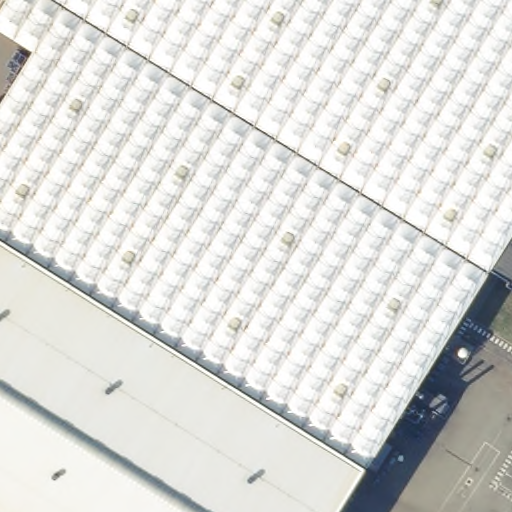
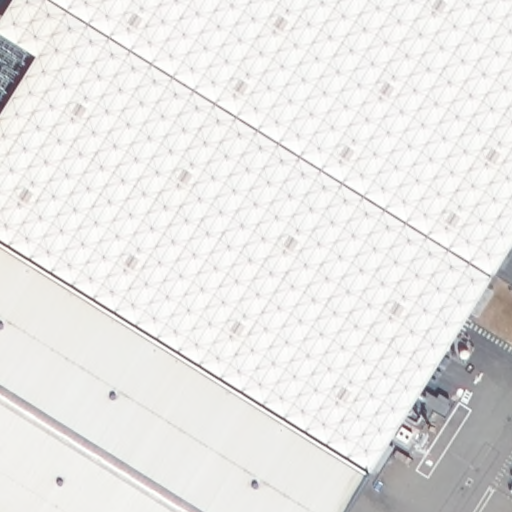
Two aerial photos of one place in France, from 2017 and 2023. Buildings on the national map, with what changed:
unchanged [(0,24),(0,18),(11,0),(99,0),(60,62),(0,24)]
unchanged [(99,0),(512,0),(512,279),(494,268),(371,463),(341,512),(0,512),(0,158),(60,62),(99,0)]

